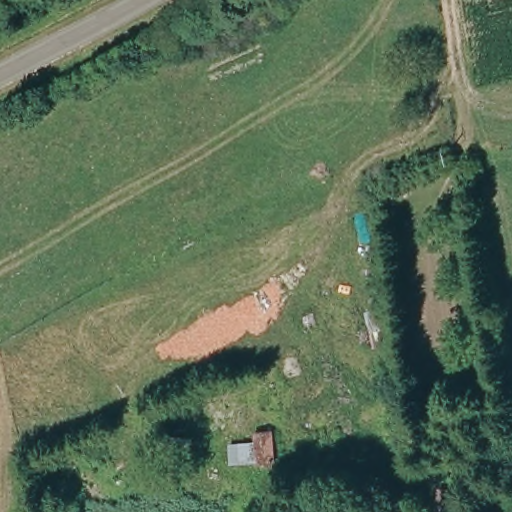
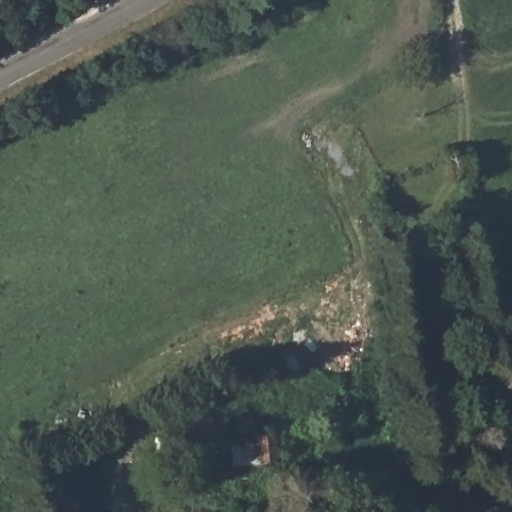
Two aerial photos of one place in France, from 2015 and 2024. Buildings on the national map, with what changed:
unchanged [(225,445),(254,442),(257,466),(228,468),(225,445)]

